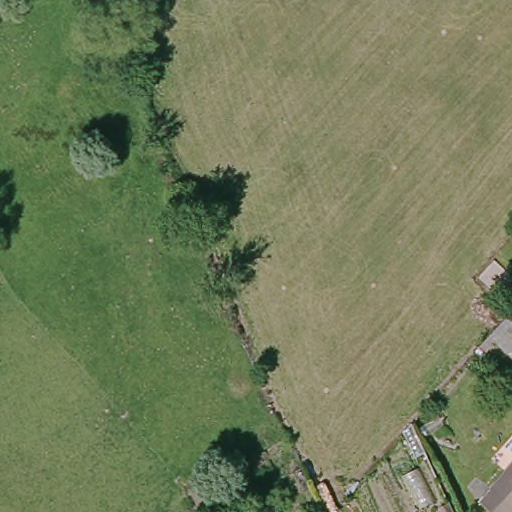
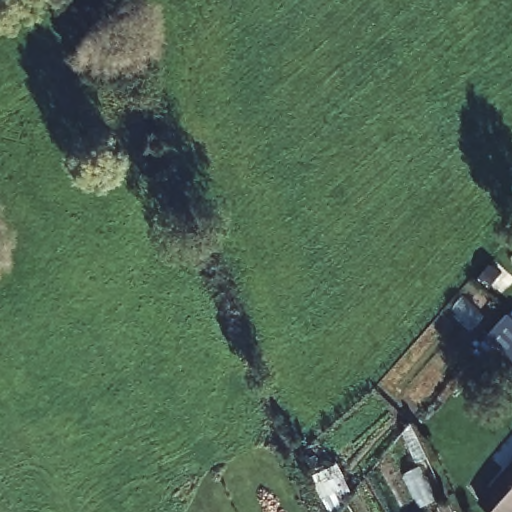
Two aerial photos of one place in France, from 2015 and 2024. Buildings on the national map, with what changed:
unchanged [(512,359),(495,344),(512,323),(512,359)]
unchanged [(512,463),(512,512),(484,512),(477,506),(512,463)]

